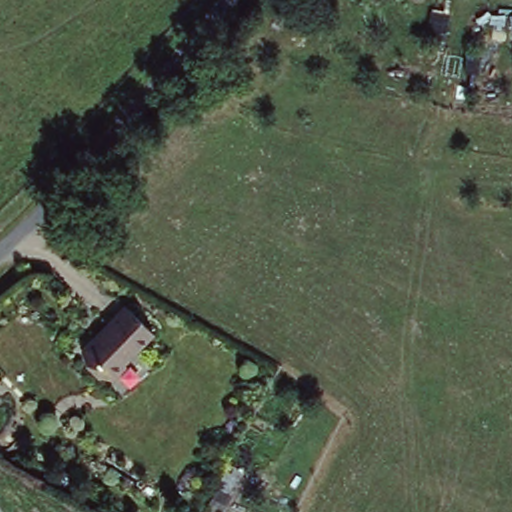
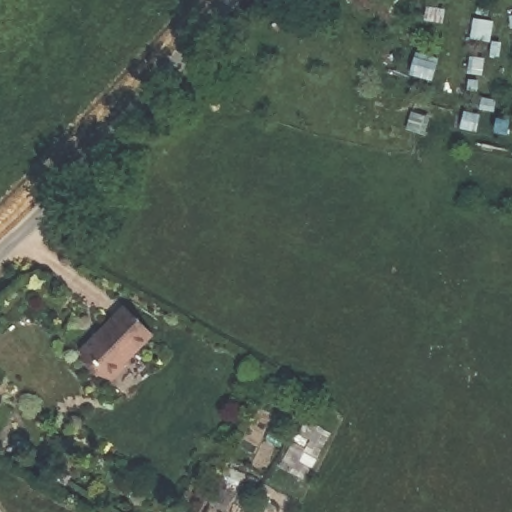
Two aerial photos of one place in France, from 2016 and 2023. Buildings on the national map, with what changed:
unchanged [(156,332),(110,384),(78,354),(123,302),(156,332)]

